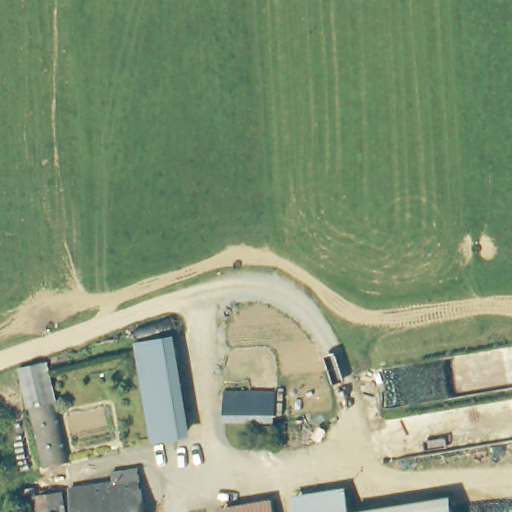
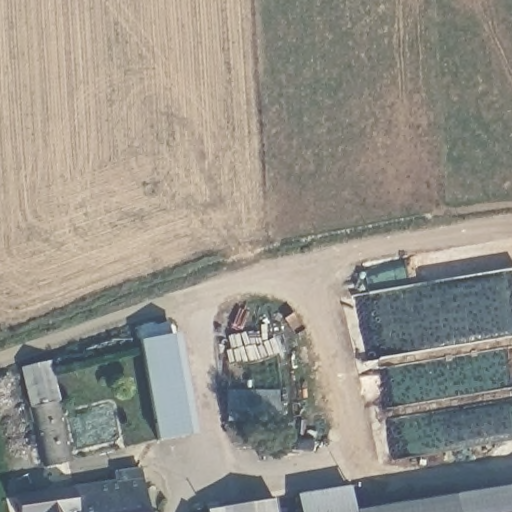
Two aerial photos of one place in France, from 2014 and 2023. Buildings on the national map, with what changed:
unchanged [(155,400),(143,342),(170,336),(181,395),(155,400)]
unchanged [(53,359),(61,402),(33,409),(23,366),(53,359)]
unchanged [(284,395),(283,414),(235,411),(237,394),(284,395)]
unchanged [(155,400),(181,395),(189,435),(164,440),(155,400)]
unchanged [(61,402),(67,401),(79,461),(45,468),(33,409),(61,402)]
unchanged [(75,512),(72,492),(103,487),(140,481),(144,505),(146,512),(75,512)]
new [(458,512),(455,495),(512,486),(512,512),(458,512)]
unchanged [(349,492),(352,512),(306,512),(304,499),(349,492)]
unchanged [(65,512),(37,512),(34,501),(61,495),(65,512)]
unchanged [(457,512),(353,512),(353,511),(455,495),(457,512)]
unchanged [(280,500),(281,512),(226,512),(225,509),(280,500)]

